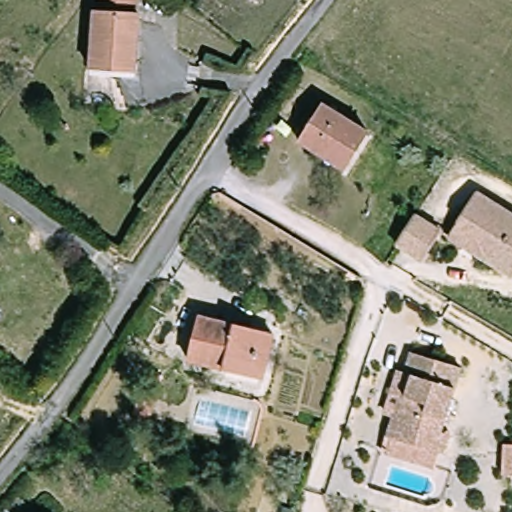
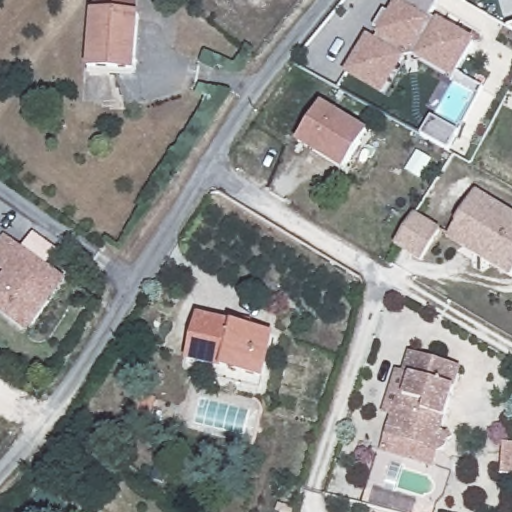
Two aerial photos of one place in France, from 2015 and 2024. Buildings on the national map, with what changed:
unchanged [(138,15),(135,71),(89,69),(93,12),(96,12),(96,0),(136,0),(136,15),(138,15)]
new [(375,44),(396,9),(392,6),(396,0),(444,0),(432,21),(477,48),(455,86),(416,62),(405,65),(384,101),(346,80),(370,41),(375,44)]
new [(510,31),(512,31),(512,33),(510,31)]
unchanged [(365,134),(342,170),(298,142),(321,105),(365,134)]
new [(435,122),(462,138),(451,156),(424,141),(435,122)]
unchanged [(475,196),(512,219),(512,276),(510,280),(484,264),(447,240),(457,225),(475,196)]
unchanged [(437,234),(419,263),(393,247),(412,218),(437,234)]
new [(28,334),(21,328),(0,312),(0,283),(8,274),(0,268),(0,245),(8,236),(61,277),(68,283),(28,334)]
unchanged [(274,335),(263,380),(187,361),(198,316),(274,335)]
unchanged [(389,452),(393,439),(413,377),(406,374),(412,353),(460,368),(442,432),(446,435),(448,439),(449,443),(448,447),(445,450),(441,452),(438,453),(434,466),(389,452)]
unchanged [(155,399),(148,424),(131,419),(138,394),(155,399)]
unchanged [(506,445),(512,445),(512,476),(505,475),(506,445)]

